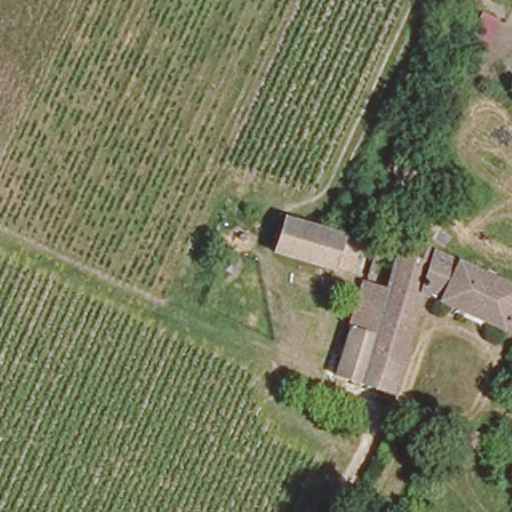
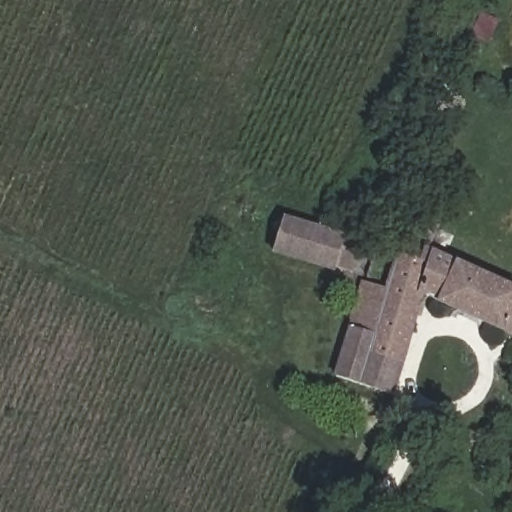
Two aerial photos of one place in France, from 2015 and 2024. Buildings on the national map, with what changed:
unchanged [(366,214),(373,199),(386,203),(378,219),(366,214)]
unchanged [(365,236),(352,274),(273,250),(285,208),(365,236)]
unchanged [(360,277),(383,283),(396,244),(416,252),(423,239),(512,280),(512,335),(421,292),(391,389),(327,371),(360,277)]

